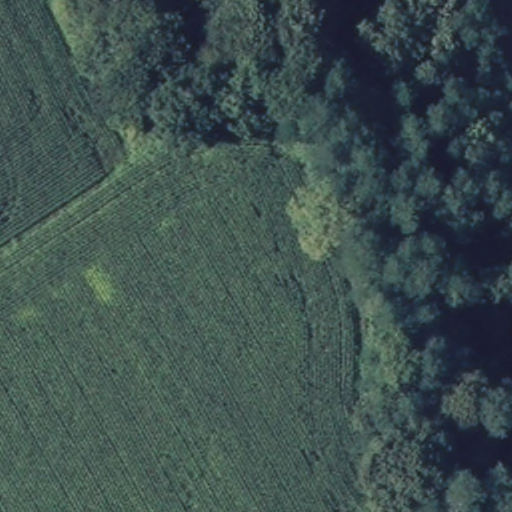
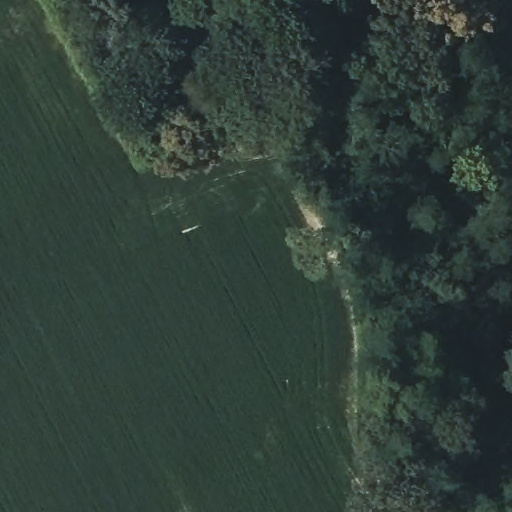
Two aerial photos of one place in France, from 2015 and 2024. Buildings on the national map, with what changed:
[]

